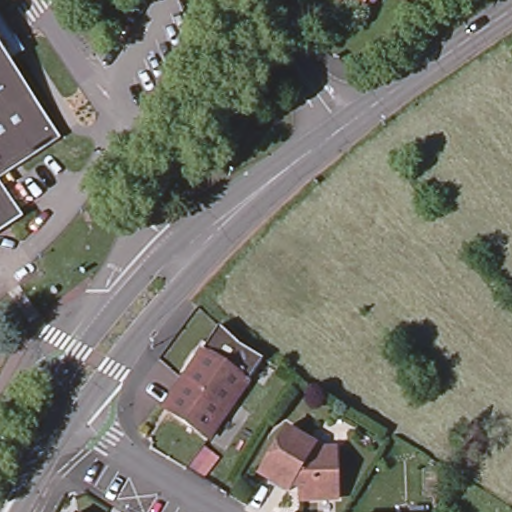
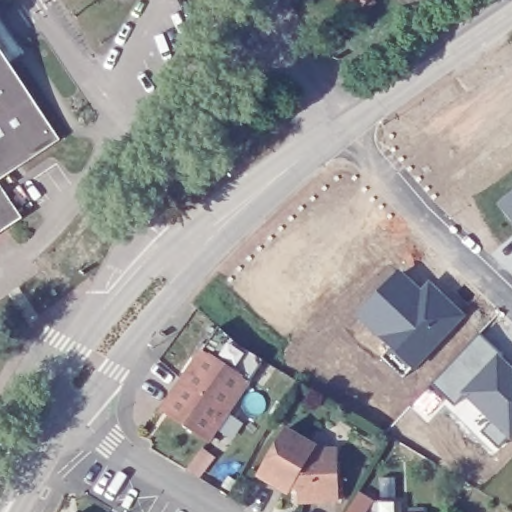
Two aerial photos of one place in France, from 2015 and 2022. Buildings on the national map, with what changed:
unchanged [(347,0),(366,0),(358,9),(347,0)]
unchanged [(59,137),(0,177),(0,49),(59,137)]
unchanged [(21,215),(0,230),(0,184),(21,215)]
new [(512,214),(501,200),(512,191),(512,214)]
new [(399,272),(420,291),(429,282),(465,315),(414,370),(356,314),(399,272)]
unchanged [(219,324),(240,343),(264,357),(249,378),(204,347),(219,324)]
new [(511,440),(466,396),(456,407),(433,385),(479,335),(512,367),(512,438),(511,440)]
unchanged [(177,386),(204,347),(249,378),(209,437),(170,410),(163,406),(177,386)]
unchanged [(284,427),(315,445),(313,449),(336,448),(338,497),(298,499),(297,490),(301,484),(295,481),(289,491),(258,472),(284,427)]

